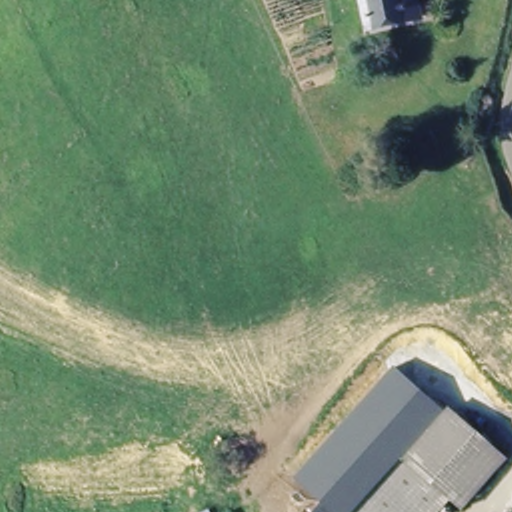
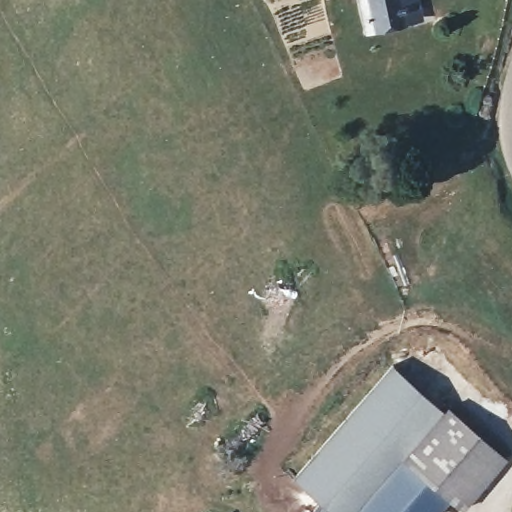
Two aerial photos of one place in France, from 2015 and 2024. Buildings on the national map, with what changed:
unchanged [(425,34),(371,41),(360,0),(415,0),(425,34)]
unchanged [(447,413),(406,460),(400,455),(352,512),(312,512),(321,501),(293,477),(391,365),(447,413)]
unchanged [(400,455),(406,460),(447,413),(451,409),(512,457),(512,460),(469,511),(449,496),(415,468),(398,495),(352,512),(400,455)]
unchanged [(436,512),(412,512),(398,495),(415,468),(449,496),(436,512)]
unchanged [(412,512),(352,512),(398,495),(412,512)]

